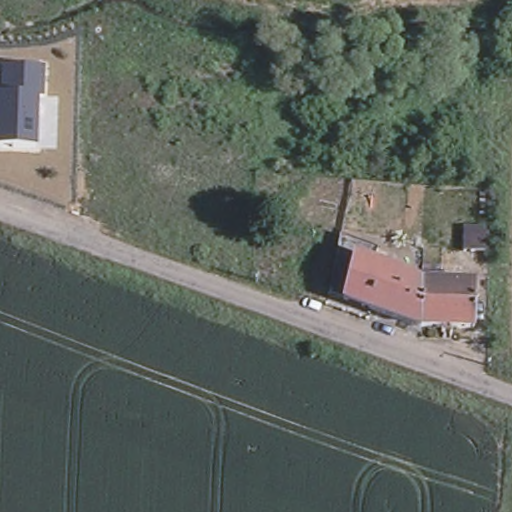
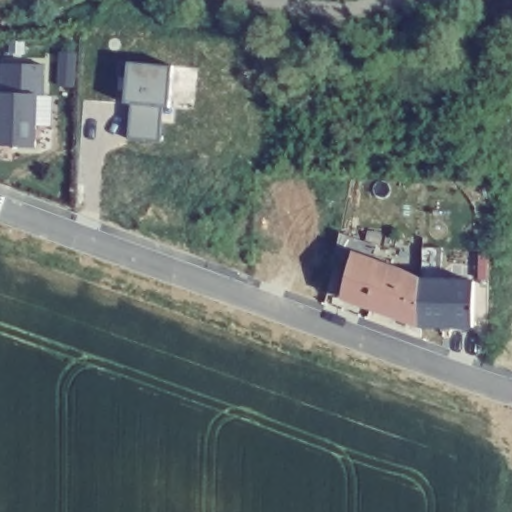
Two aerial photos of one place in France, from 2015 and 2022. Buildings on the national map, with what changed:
unchanged [(2,62),(45,64),(45,96),(38,95),(37,146),(0,146),(0,92),(1,92),(2,62)]
new [(132,104),(125,104),(128,76),(119,76),(120,62),(130,62),(174,67),(172,109),(162,108),(160,143),(130,140),(132,104)]
demolished [(447,229),(432,229),(434,187),(450,189),(447,229)]
demolished [(476,191),(474,217),(457,216),(459,189),(476,191)]
unchanged [(491,257),(466,255),(466,230),(491,231),(491,257)]
unchanged [(377,249),(372,261),(357,304),(339,296),(360,243),(377,249)]
unchanged [(413,278),(405,323),(357,304),(372,261),(413,278)]
unchanged [(405,323),(413,278),(432,283),(432,335),(405,323)]
unchanged [(432,283),(477,293),(476,337),(432,335),(432,283)]

